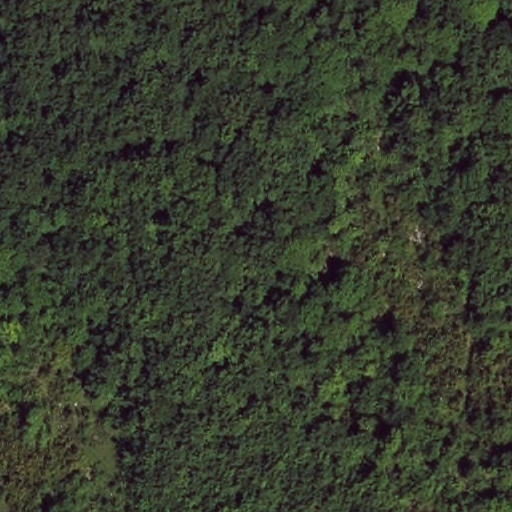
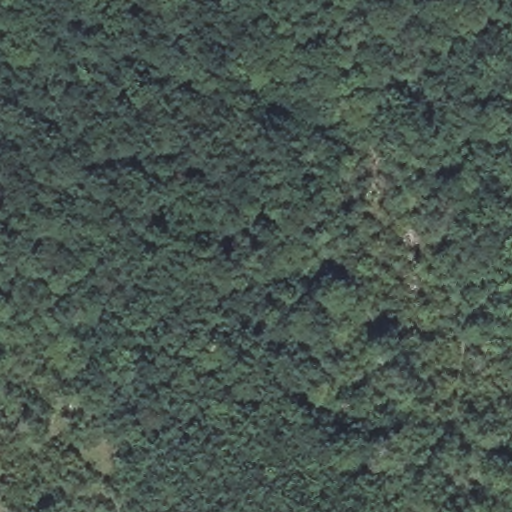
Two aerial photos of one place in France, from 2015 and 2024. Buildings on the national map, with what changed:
[]

